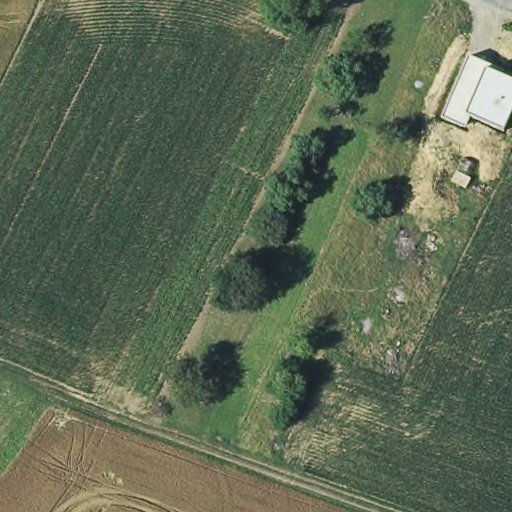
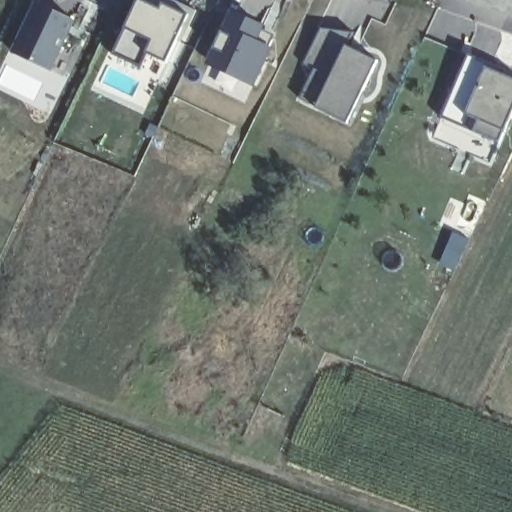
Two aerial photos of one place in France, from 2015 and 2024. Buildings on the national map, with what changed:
new [(37,0),(39,0),(73,16),(49,66),(13,49),(37,0)]
new [(188,9),(163,65),(141,55),(136,65),(110,58),(135,0),(151,0),(188,9)]
new [(214,45),(222,29),(225,30),(234,11),(260,23),(257,29),(272,36),(262,57),(264,58),(253,80),(218,63),(224,49),(217,46),(214,45)]
new [(321,26),(353,30),(346,43),(377,58),(346,121),(299,97),(314,67),(303,61),(321,26)]
new [(217,46),(224,50),(218,63),(211,60),(217,46)]
unchanged [(492,71),(512,80),(512,112),(504,130),(469,113),(466,126),(443,116),(469,54),(495,65),(492,71)]

